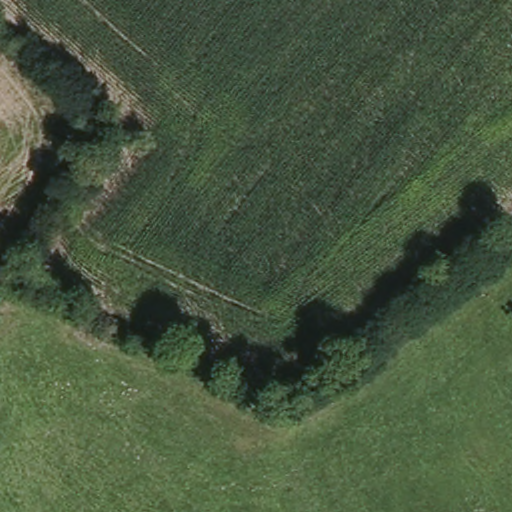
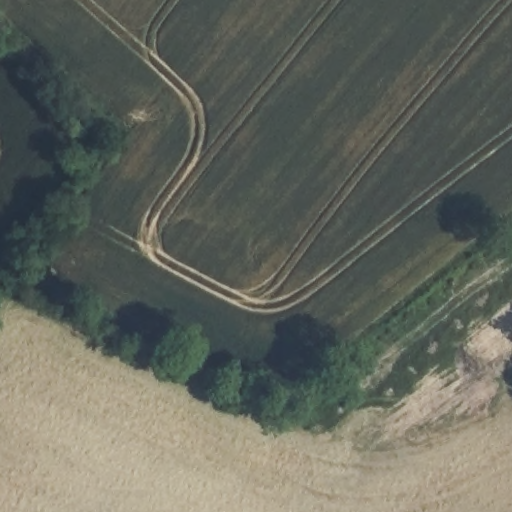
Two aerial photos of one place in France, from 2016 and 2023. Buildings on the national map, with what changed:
[]

